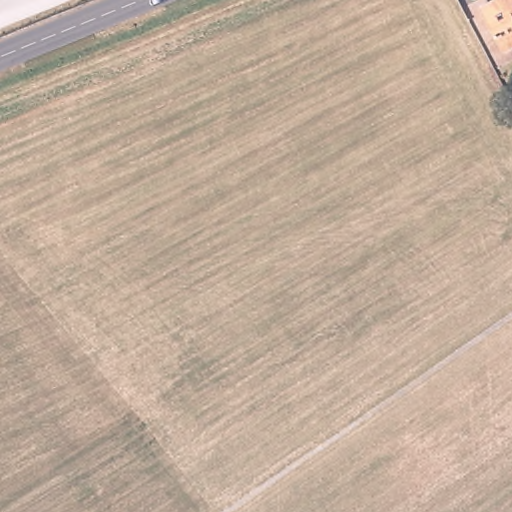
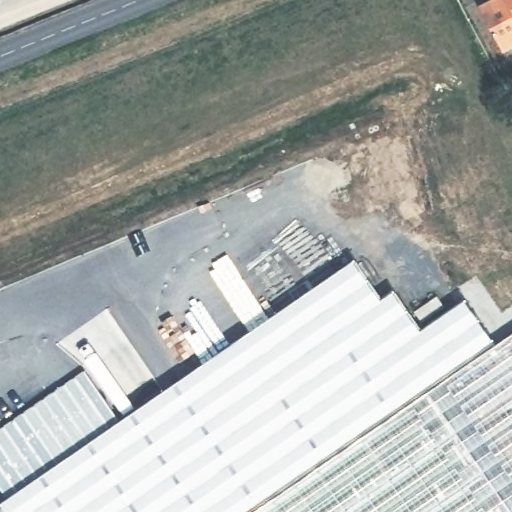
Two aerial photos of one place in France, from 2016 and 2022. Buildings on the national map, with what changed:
unchanged [(508,50),(485,4),(492,0),(512,0),(512,48),(508,50)]
new [(0,491),(0,428),(84,370),(122,420),(355,261),(381,300),(395,290),(422,330),(464,300),(497,346),(255,512),(0,512),(0,504),(6,500),(0,491)]
new [(512,335),(512,512),(255,512),(497,346),(512,335)]

